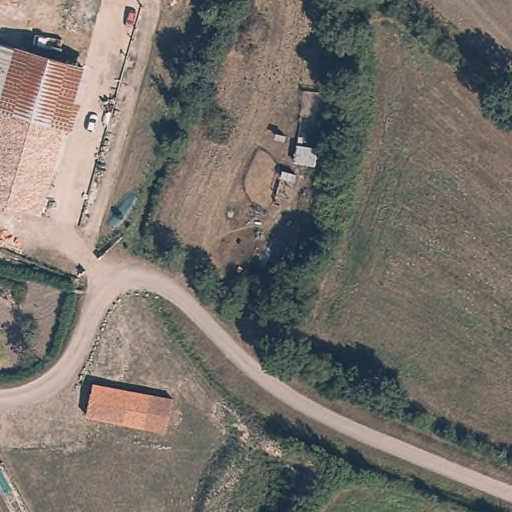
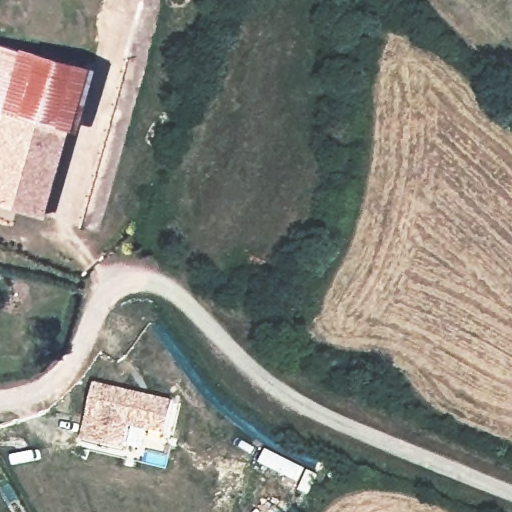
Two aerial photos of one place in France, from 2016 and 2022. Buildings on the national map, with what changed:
unchanged [(70,131),(8,112),(0,110),(0,42),(24,50),(60,61),(88,70),(80,97),(70,131)]
unchanged [(8,112),(70,131),(45,217),(0,203),(0,139),(8,112)]
unchanged [(321,147),(318,171),(293,169),(295,146),(321,147)]
unchanged [(174,404),(168,435),(87,418),(94,386),(174,404)]

